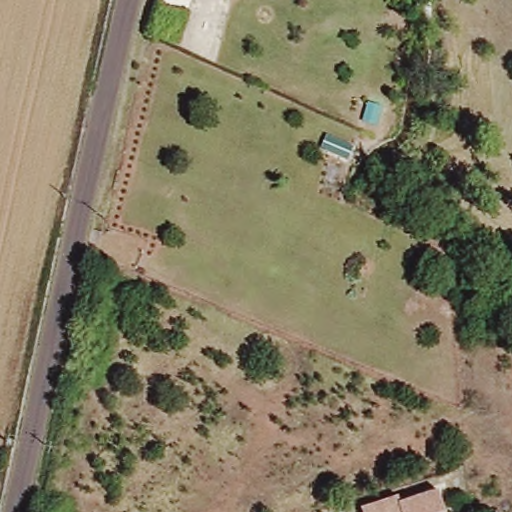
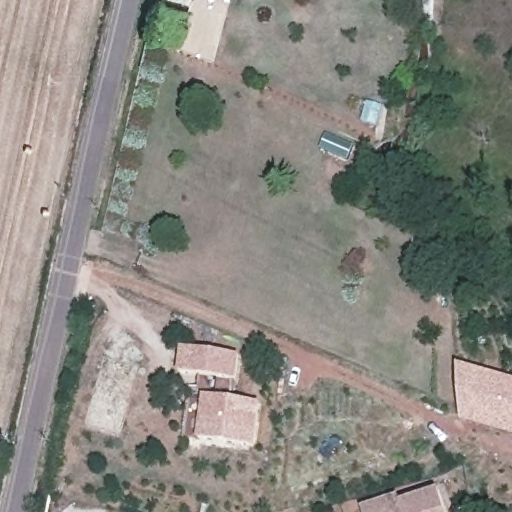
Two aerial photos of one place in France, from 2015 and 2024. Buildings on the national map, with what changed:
new [(178,374),(182,350),(241,358),(238,382),(178,374)]
new [(512,381),(512,437),(462,423),(459,367),(512,381)]
new [(197,440),(205,399),(262,405),(256,448),(197,440)]
unchanged [(402,496),(404,503),(442,493),(445,512),(366,512),(364,507),(402,496)]

